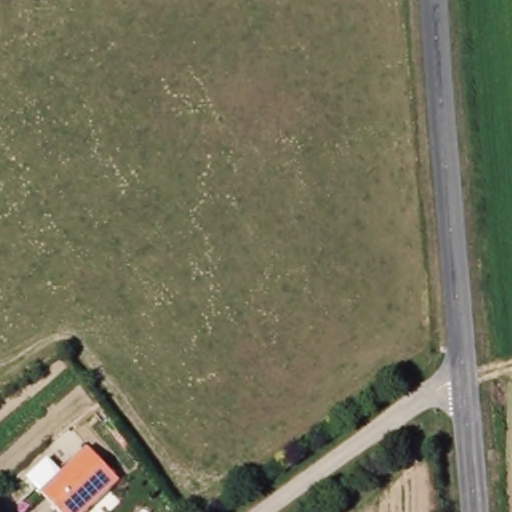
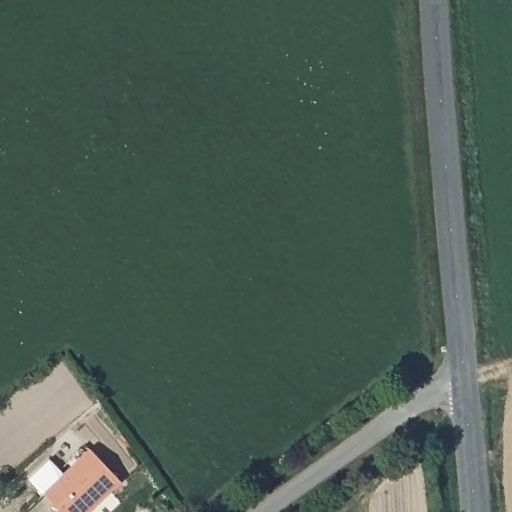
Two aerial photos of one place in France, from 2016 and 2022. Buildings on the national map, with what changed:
unchanged [(52,512),(37,494),(89,451),(119,488),(92,512),(52,512)]

